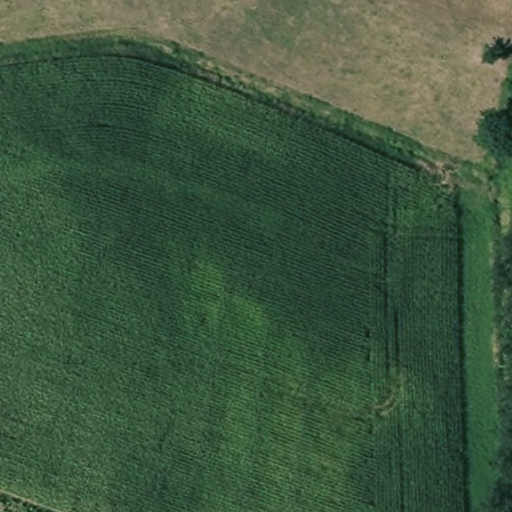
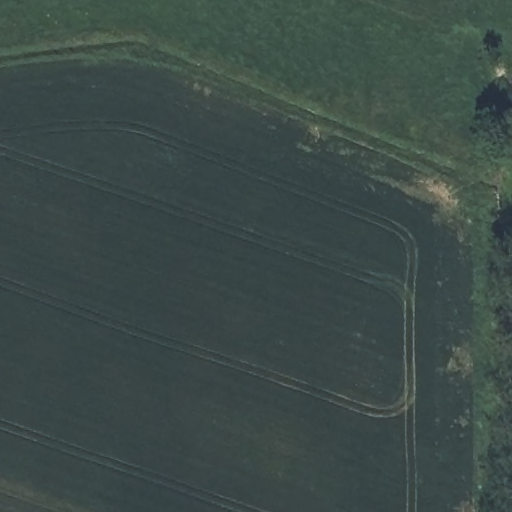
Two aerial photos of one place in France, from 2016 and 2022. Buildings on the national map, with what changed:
[]

